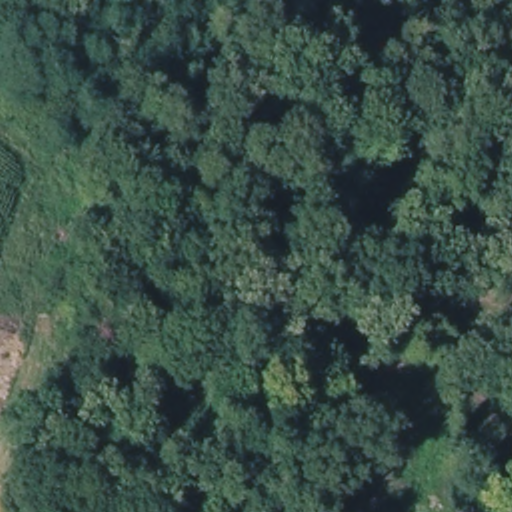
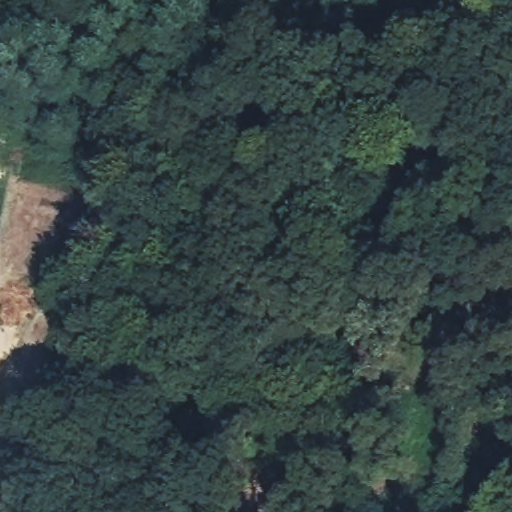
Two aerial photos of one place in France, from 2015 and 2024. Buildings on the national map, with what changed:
unchanged [(427,508),(428,512),(401,512),(401,511),(427,508)]

